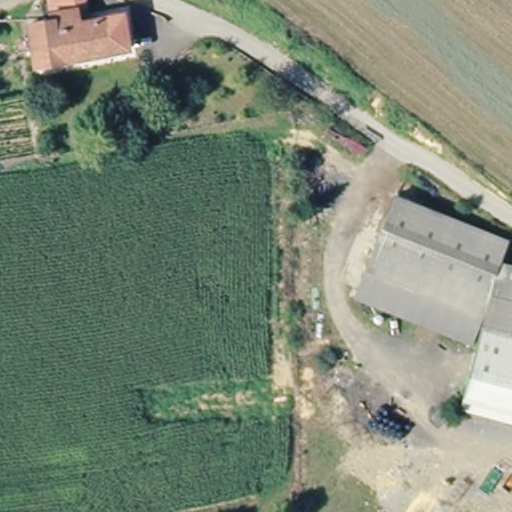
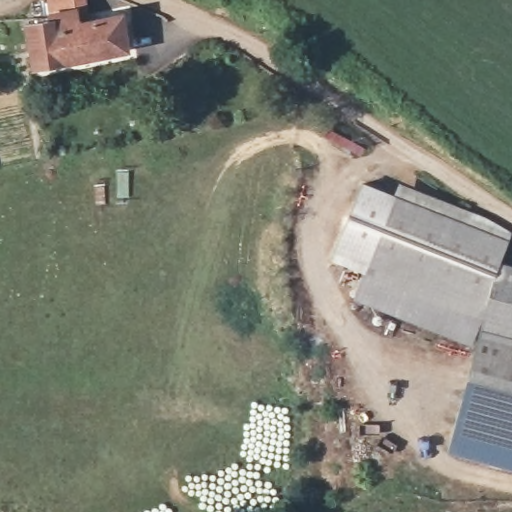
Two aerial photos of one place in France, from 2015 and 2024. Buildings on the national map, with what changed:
unchanged [(42,0),(80,0),(80,1),(78,21),(112,24),(114,61),(42,60),(42,35),(30,36),(29,10),(40,10),(42,0)]
new [(363,185),(395,194),(364,272),(331,261),(363,185)]
unchanged [(364,272),(395,194),(510,240),(501,261),(512,264),(512,425),(459,411),(483,318),(472,346),(353,300),(364,272)]
new [(512,425),(512,468),(448,450),(459,411),(512,425)]

